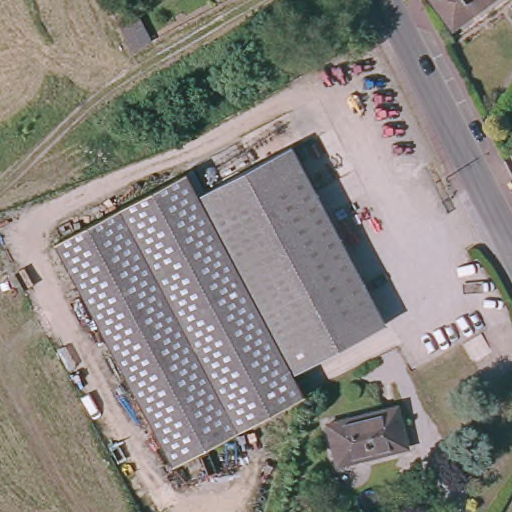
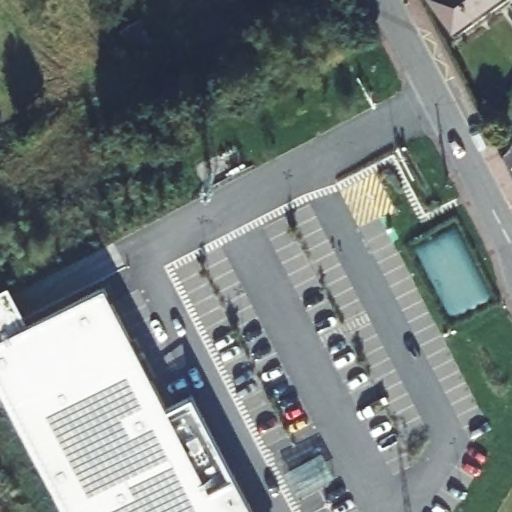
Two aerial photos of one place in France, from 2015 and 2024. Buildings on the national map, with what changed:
unchanged [(451,27),(433,0),(492,0),(451,27)]
unchanged [(120,40),(137,31),(149,52),(130,62),(120,40)]
demolished [(197,194),(291,146),(382,321),(290,370),(197,194)]
new [(22,325),(102,285),(165,403),(190,390),(253,512),(70,512),(0,371),(0,289),(22,325)]
demolished [(395,406),(406,446),(331,463),(324,422),(395,406)]
new [(282,471),(320,452),(333,477),(295,497),(282,471)]

